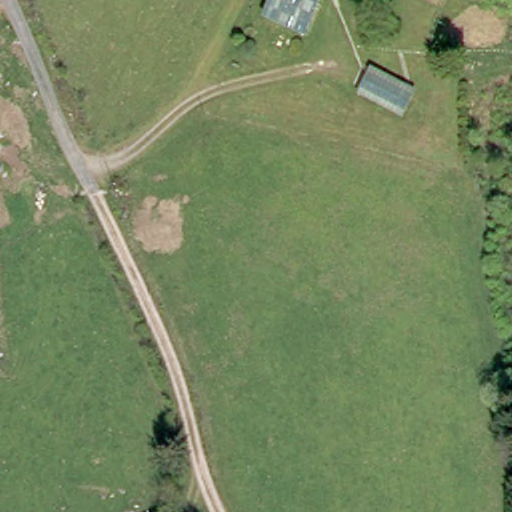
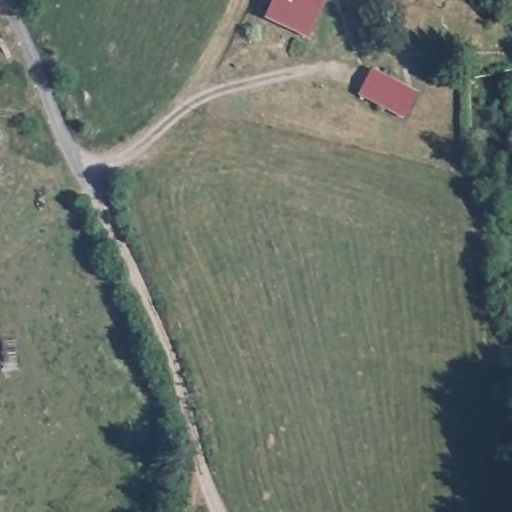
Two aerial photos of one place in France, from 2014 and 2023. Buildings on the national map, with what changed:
unchanged [(315,0),(301,28),(259,13),(265,0),(315,0)]
unchanged [(402,113),(357,94),(371,67),(413,89),(402,113)]

